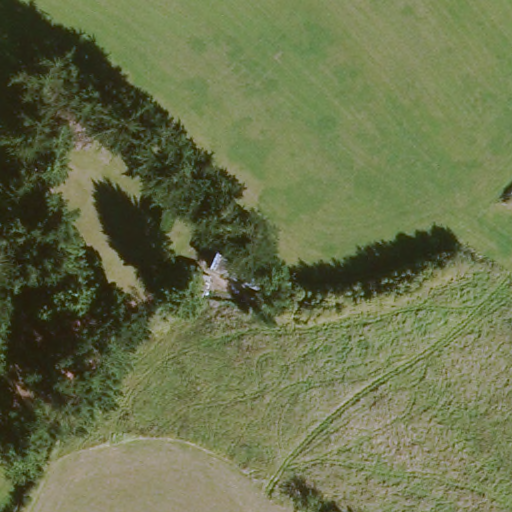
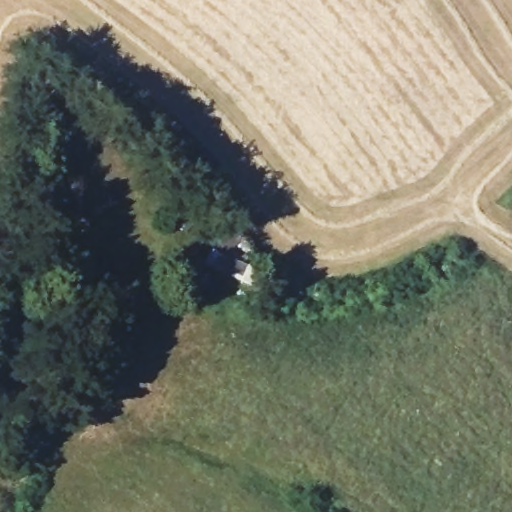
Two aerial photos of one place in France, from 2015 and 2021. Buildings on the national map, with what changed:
unchanged [(259,261),(253,279),(216,266),(222,248),(259,261)]

